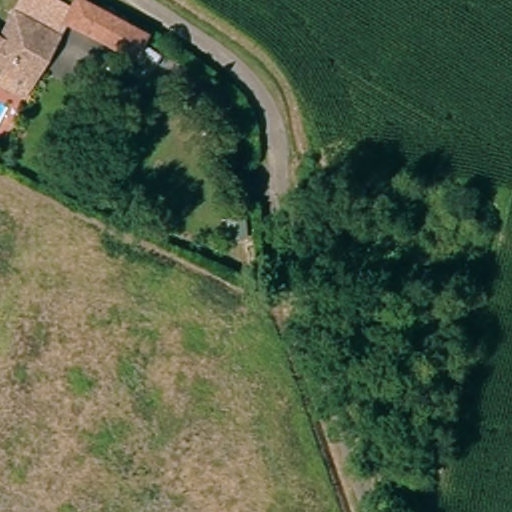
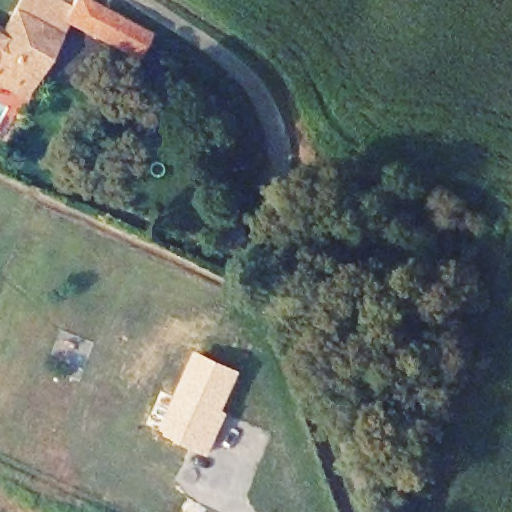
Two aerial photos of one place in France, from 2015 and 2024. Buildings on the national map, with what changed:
unchanged [(2,36),(22,0),(48,0),(67,10),(63,18),(65,19),(23,98),(0,86),(0,35),(2,36)]
unchanged [(135,52),(65,19),(63,18),(67,10),(71,0),(86,0),(148,30),(135,52)]
new [(199,352),(243,372),(226,410),(231,412),(210,455),(162,433),(199,352)]

